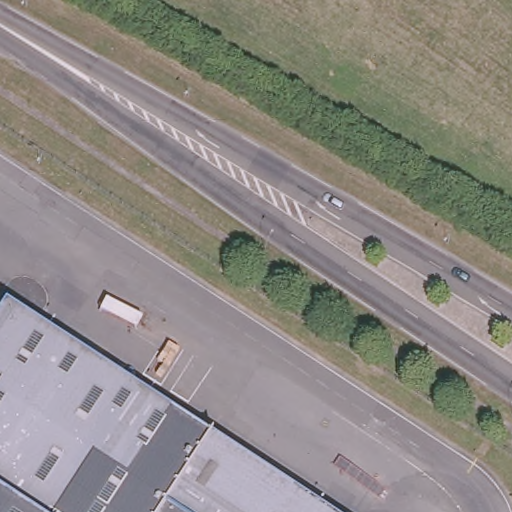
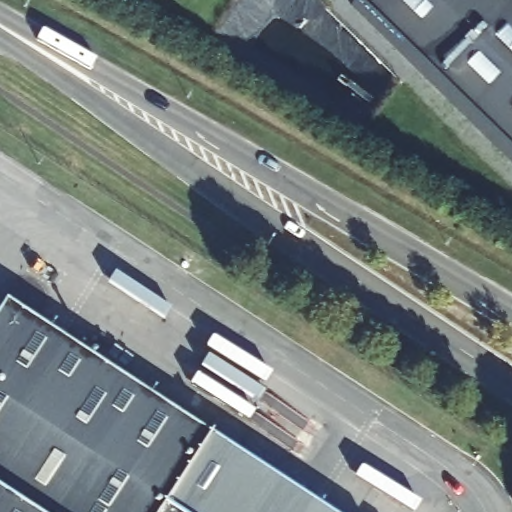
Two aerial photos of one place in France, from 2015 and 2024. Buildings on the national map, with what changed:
new [(355,0),(512,0),(512,159),(355,0)]
demolished [(212,335),(186,379),(81,312),(107,268),(212,335)]
unchanged [(52,335),(334,512),(0,512),(0,304),(45,331),(52,335)]

